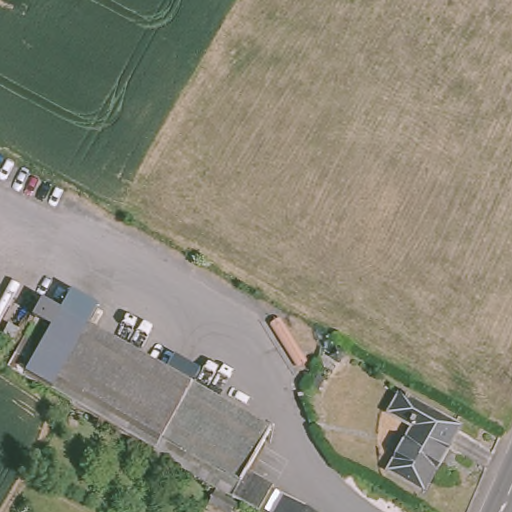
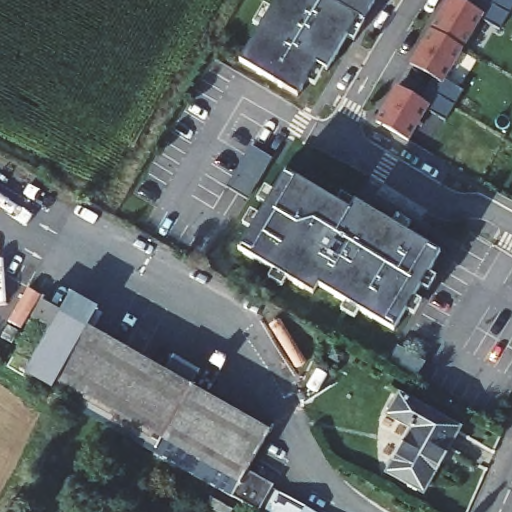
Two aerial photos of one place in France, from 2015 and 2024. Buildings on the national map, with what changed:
new [(354,19),(323,71),(312,65),(292,98),(234,63),(272,0),(372,0),(359,21),(354,19)]
new [(424,90),(432,76),(409,63),(447,0),(458,0),(474,10),(479,0),(512,0),(512,9),(508,15),(499,30),(482,19),(444,82),(461,92),(452,106),(443,121),(426,111),(409,141),(375,120),(396,86),(419,99),(424,90)]
new [(246,145),(268,158),(244,197),(223,184),(246,145)]
new [(280,174),(357,221),(362,212),(437,257),(389,336),(313,289),(308,298),(232,253),(280,174)]
unchanged [(261,508),(238,494),(213,480),(202,474),(106,417),(79,402),(43,381),(30,373),(11,362),(20,345),(39,356),(68,306),(275,430),(254,467),(276,481),(273,489),(284,496),(312,512),(269,512),(261,508)]
new [(396,347),(424,364),(413,382),(385,366),(396,347)]
unchanged [(463,427),(427,491),(391,471),(413,429),(391,417),(403,393),(463,427)]

